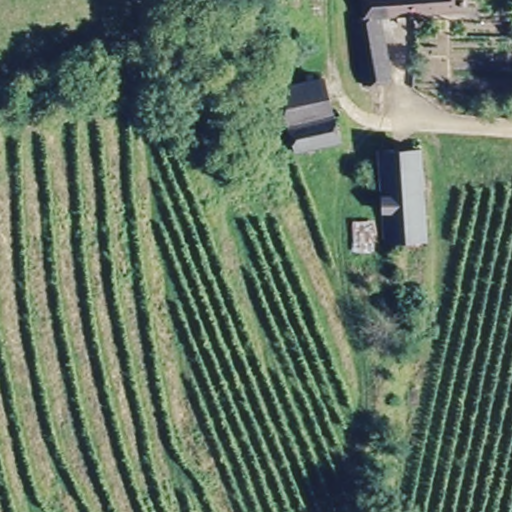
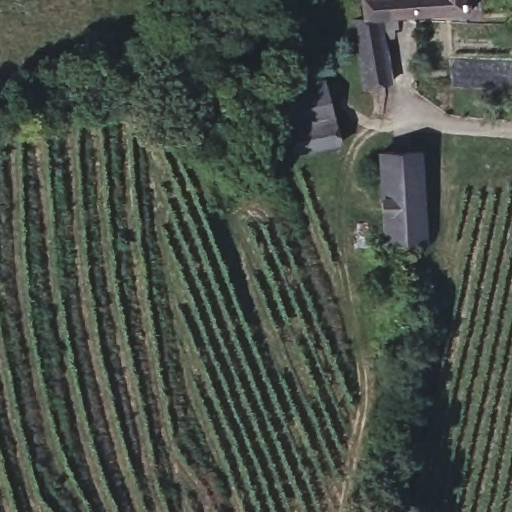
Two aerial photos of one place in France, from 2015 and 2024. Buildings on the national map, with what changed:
unchanged [(414,15),(394,17),(396,32),(383,35),(391,85),(364,91),(353,21),(362,20),(359,0),(415,0),(414,15)]
unchanged [(464,12),(414,15),(415,0),(463,0),(464,12)]
unchanged [(323,82),(338,140),(289,155),(273,95),(323,82)]
unchanged [(417,151),(422,242),(386,245),(381,153),(417,151)]

